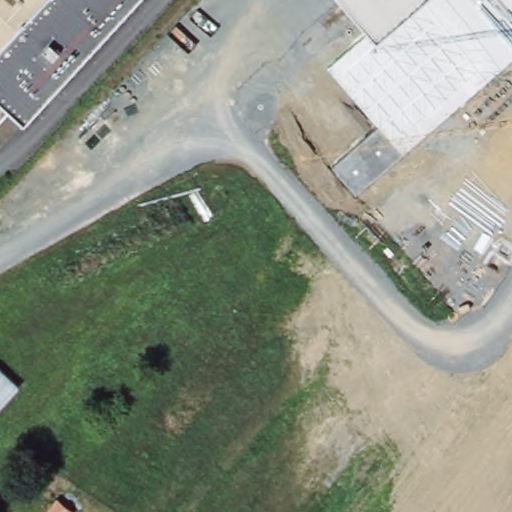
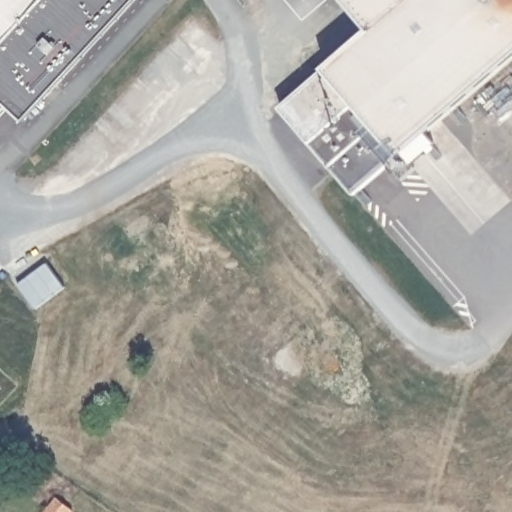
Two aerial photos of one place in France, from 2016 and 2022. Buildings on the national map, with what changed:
unchanged [(0,118),(0,119),(0,0),(134,0),(14,131),(0,118)]
unchanged [(332,166),(379,127),(330,70),(376,35),(416,0),(512,0),(512,62),(357,197),(332,166)]
unchanged [(346,0),(416,0),(376,35),(346,0)]
new [(283,108),(330,70),(379,127),(332,166),(283,108)]
unchanged [(65,512),(43,512),(51,501),(65,512)]

